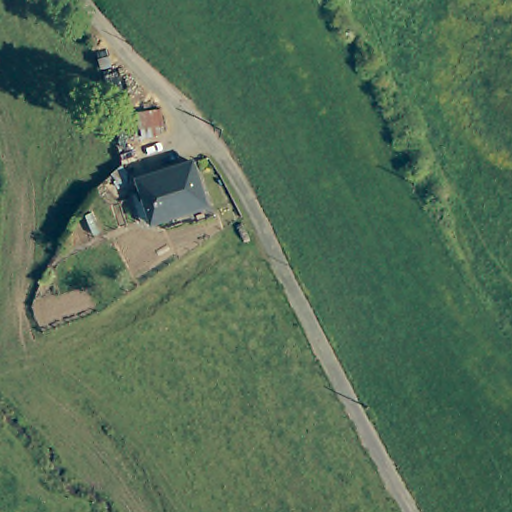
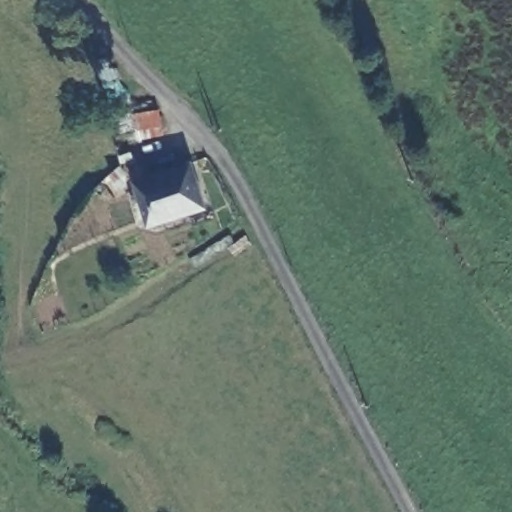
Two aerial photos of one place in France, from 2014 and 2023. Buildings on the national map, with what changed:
unchanged [(194,161),(212,207),(152,226),(136,182),(194,161)]

